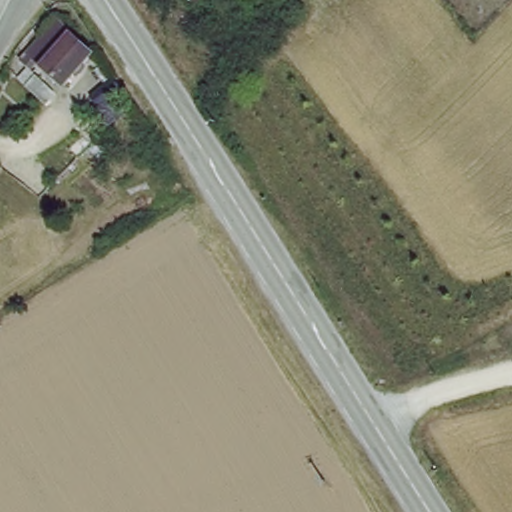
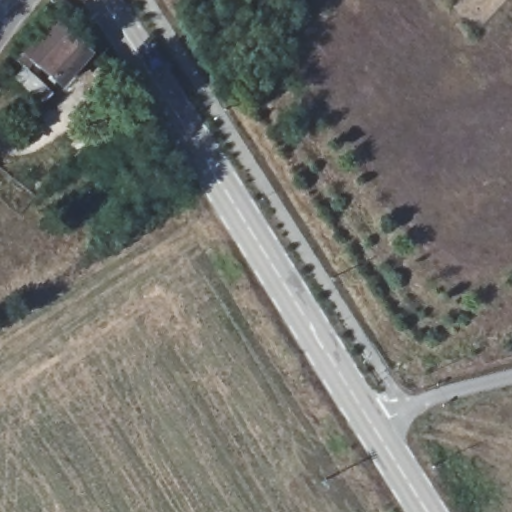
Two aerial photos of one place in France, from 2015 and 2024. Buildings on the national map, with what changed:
unchanged [(96,46),(67,77),(42,54),(33,63),(25,54),(61,13),(96,46)]
unchanged [(29,63),(57,87),(50,94),(22,69),(29,63)]

